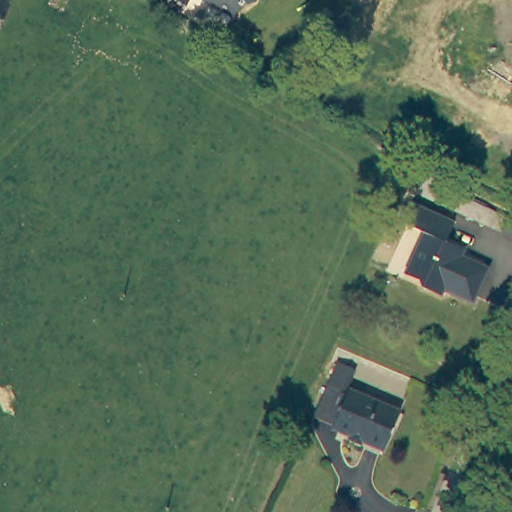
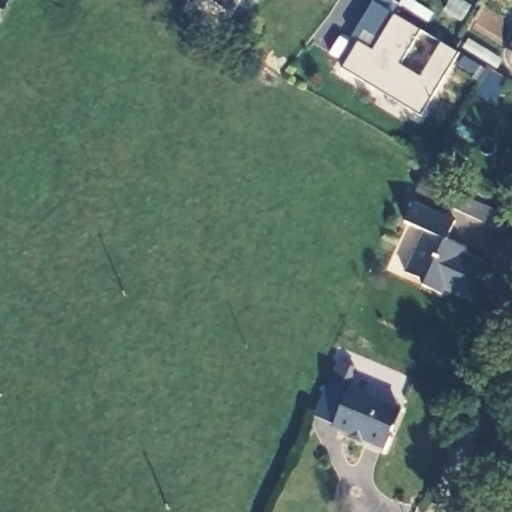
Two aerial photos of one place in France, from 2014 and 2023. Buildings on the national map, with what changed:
unchanged [(0,0),(5,0),(0,12),(0,0)]
unchanged [(212,0),(240,0),(232,12),(212,0)]
new [(372,1),(396,16),(375,51),(359,43),(350,36),(372,1)]
new [(359,43),(375,51),(396,16),(421,31),(401,65),(421,77),(441,42),(458,53),(421,117),(342,68),(359,43)]
demolished [(327,43),(342,26),(352,34),(339,52),(327,43)]
unchanged [(425,174),(458,190),(457,194),(505,216),(498,230),(417,192),(425,174)]
unchanged [(446,240),(455,244),(453,246),(457,256),(462,254),(489,266),(473,301),(445,289),(442,294),(422,286),(420,279),(405,272),(423,231),(403,222),(412,202),(455,220),(446,240)]
unchanged [(328,423),(309,414),(332,362),(348,370),(338,394),(341,395),(336,406),(328,423)]
unchanged [(327,427),(328,423),(336,406),(341,395),(343,388),(393,410),(377,448),(327,427)]

